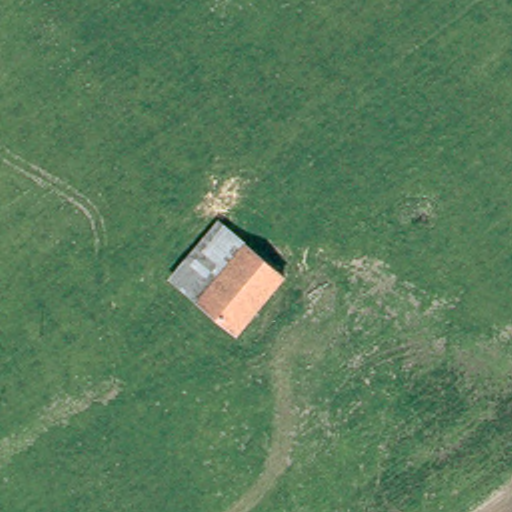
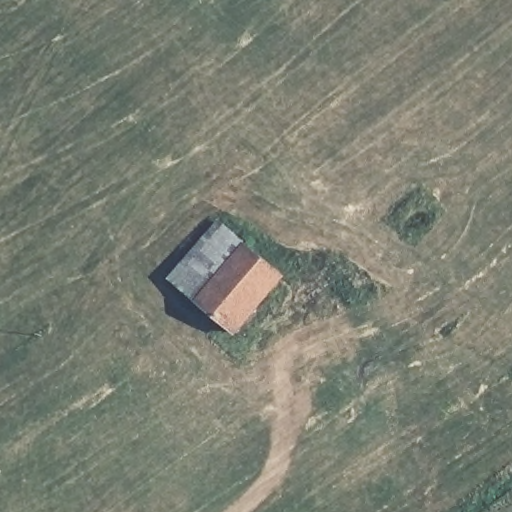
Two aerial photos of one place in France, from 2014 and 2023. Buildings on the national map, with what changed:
unchanged [(172,278),(219,222),(245,244),(199,300),(172,278)]
unchanged [(284,276),(237,332),(199,300),(245,244),(284,276)]

